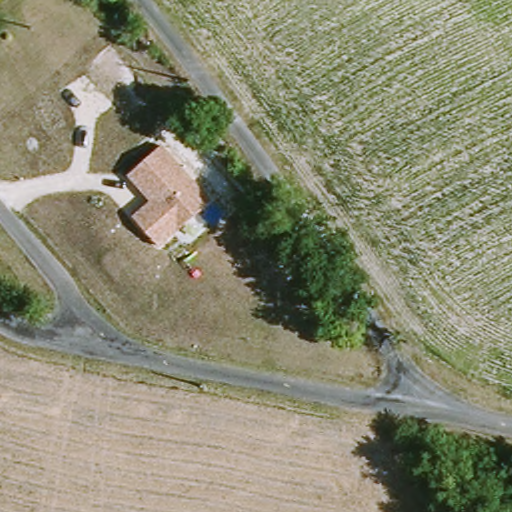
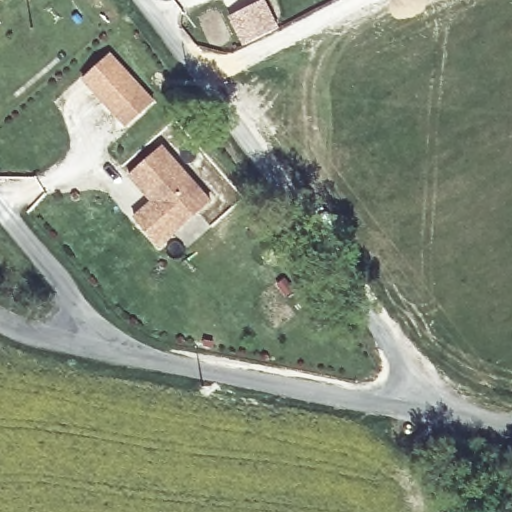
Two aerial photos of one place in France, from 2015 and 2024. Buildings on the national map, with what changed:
new [(259,0),(264,0),(278,29),(243,46),(228,18),(259,0)]
new [(81,81),(110,54),(153,102),(125,128),(81,81)]
unchanged [(143,226),(156,213),(156,204),(132,173),(162,147),(212,202),(199,213),(214,227),(189,249),(174,232),(159,245),(143,226)]

